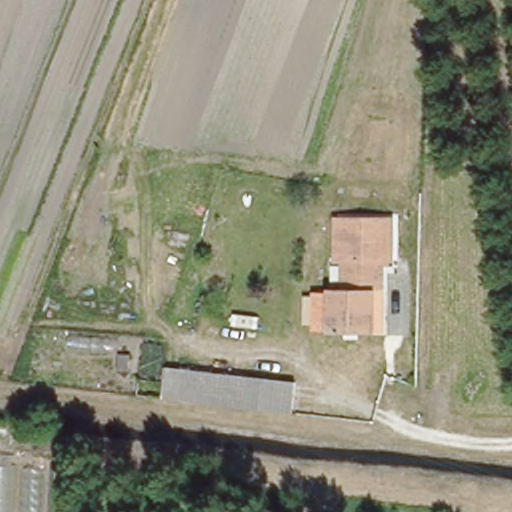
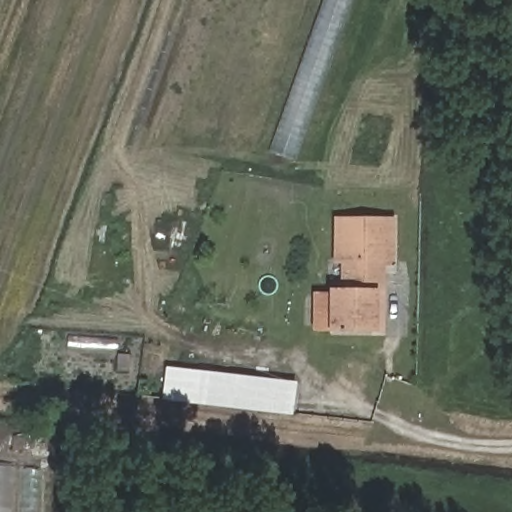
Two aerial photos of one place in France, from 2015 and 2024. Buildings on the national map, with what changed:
new [(295,160),(270,150),(325,0),(352,0),(295,160)]
unchanged [(380,338),(328,336),(328,298),(341,298),(342,267),(334,267),(334,227),(394,226),(394,268),(381,268),(380,338)]
unchanged [(296,383),(292,416),(160,399),(163,367),(296,383)]
unchanged [(0,512),(0,461),(46,469),(45,512),(0,512)]

